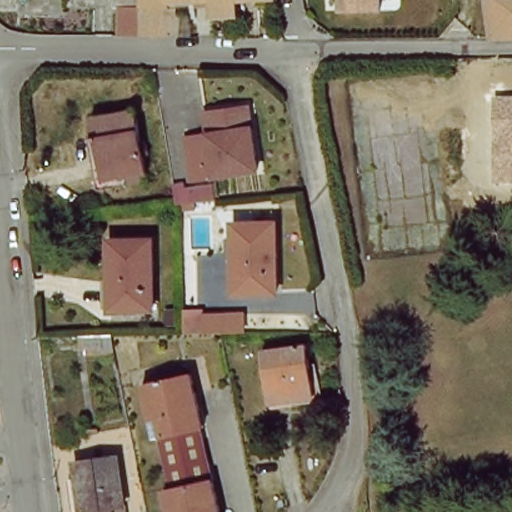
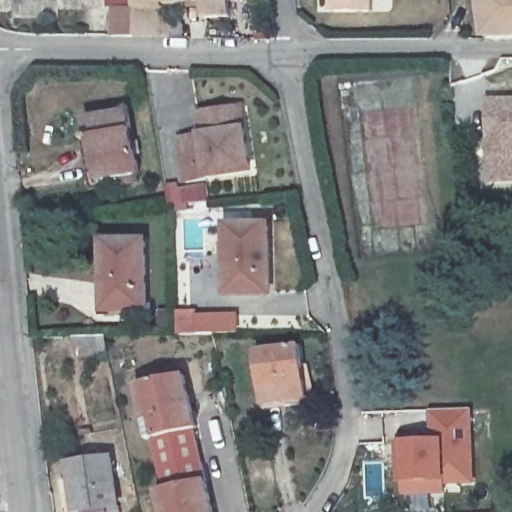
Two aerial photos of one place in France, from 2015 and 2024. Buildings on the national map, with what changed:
unchanged [(273,6),(237,7),(236,24),(205,25),(204,10),(174,10),(173,36),(131,34),(133,0),(272,0),(273,6)]
unchanged [(371,16),(326,17),(326,0),(372,0),(371,16)]
unchanged [(483,0),(512,0),(512,35),(488,35),(483,0)]
unchanged [(487,97),(512,96),(512,184),(489,184),(487,97)]
unchanged [(238,105),(242,127),(250,169),(187,182),(178,140),(200,135),(195,114),(223,108),(238,105)]
unchanged [(129,111),(141,172),(101,181),(93,140),(91,140),(87,118),(129,111)]
unchanged [(199,186),(200,200),(175,202),(171,202),(168,190),(199,186)]
unchanged [(271,227),(272,297),(229,297),(230,227),(271,227)]
unchanged [(150,245),(150,312),(107,312),(106,245),(150,245)]
new [(241,336),(199,337),(181,337),(181,317),(199,317),(199,318),(241,317),(241,336)]
unchanged [(108,338),(111,357),(81,357),(78,339),(108,338)]
unchanged [(303,349),(311,401),(267,406),(259,355),(303,349)]
unchanged [(203,426),(200,427),(219,512),(169,512),(165,493),(172,492),(159,440),(154,441),(140,385),(189,374),(203,426)]
new [(447,486),(447,497),(405,496),(404,484),(403,442),(432,440),(430,412),(475,411),(476,485),(447,486)]
unchanged [(120,507),(85,512),(77,512),(70,466),(111,460),(120,507)]

